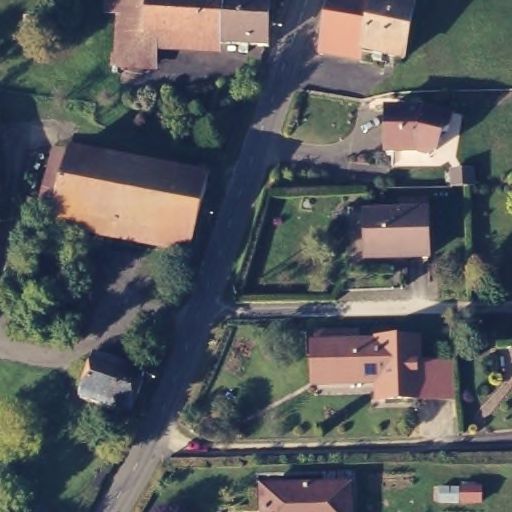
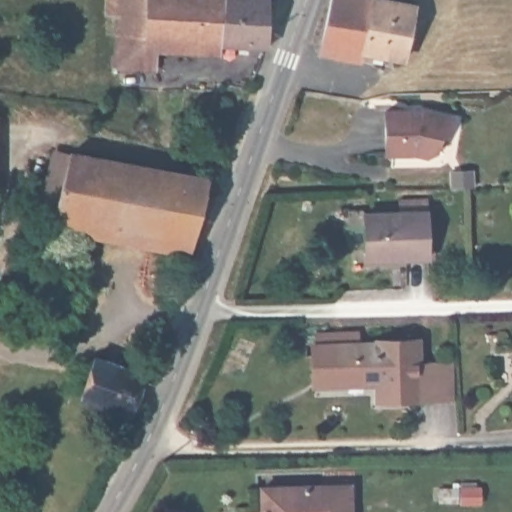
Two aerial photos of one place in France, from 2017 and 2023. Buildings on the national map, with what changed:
unchanged [(148,77),(118,75),(113,74),(113,67),(118,68),(122,0),(201,0),(226,2),(227,0),(245,0),(269,2),(268,56),(151,47),(148,77)]
unchanged [(328,46),(336,0),(374,0),(377,0),(367,53),(328,46)]
unchanged [(417,8),(408,61),(387,56),(386,65),(379,64),(379,55),(367,53),(377,0),(417,8)]
unchanged [(386,113),(454,114),(449,136),(439,136),(438,156),(384,155),(386,113)]
unchanged [(58,208),(77,144),(211,184),(195,247),(58,208)]
unchanged [(367,257),(366,217),(430,216),(431,261),(406,262),(368,263),(367,257)]
unchanged [(304,347),(308,347),(307,335),(349,334),(349,346),(369,346),(369,343),(409,342),(409,366),(444,366),(444,399),(409,400),(371,401),(370,381),(306,383),(306,375),(304,347)]
unchanged [(131,418),(131,419),(80,400),(95,359),(146,376),(131,418)]
unchanged [(269,483),(351,481),(353,512),(269,512),(269,483)]

